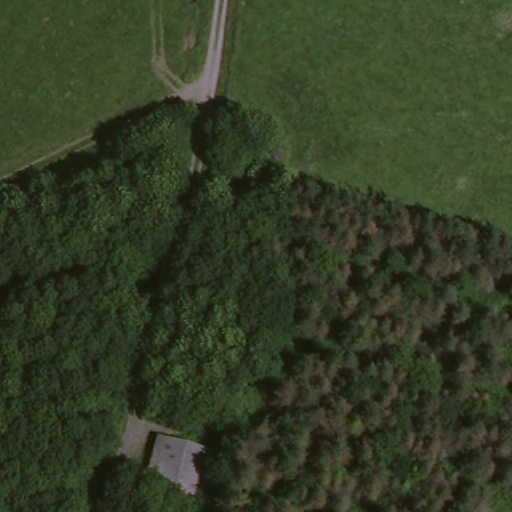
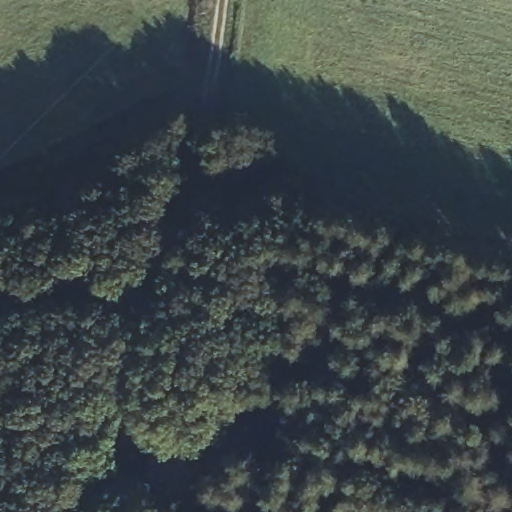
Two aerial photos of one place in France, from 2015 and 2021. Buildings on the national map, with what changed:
unchanged [(199,512),(189,512),(143,500),(158,437),(213,452),(199,512)]

